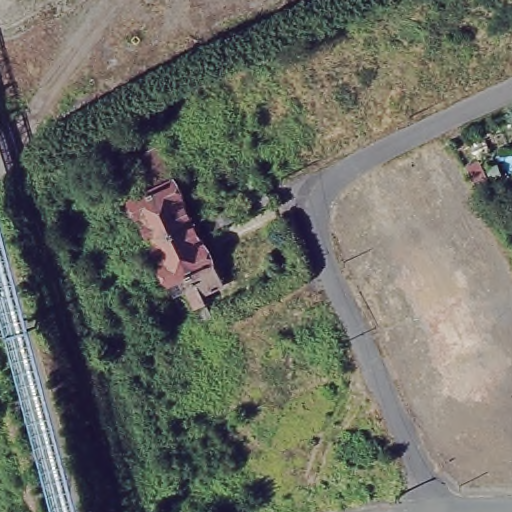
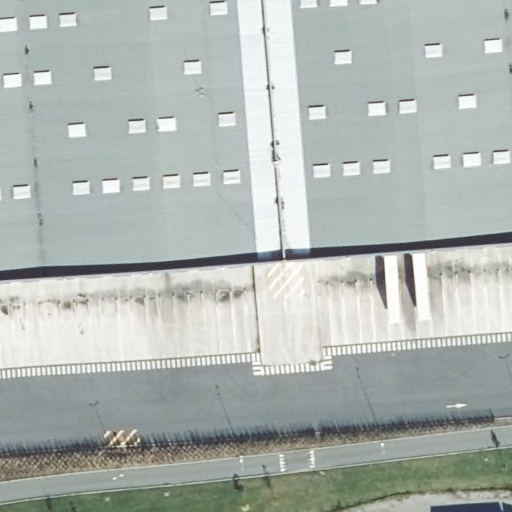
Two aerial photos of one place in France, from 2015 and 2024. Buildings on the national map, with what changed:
new [(512,238),(0,277),(0,0),(512,0),(512,238)]
demolished [(158,144),(173,176),(182,194),(177,196),(188,219),(170,228),(136,154),(142,152),(158,144)]
demolished [(95,160),(85,165),(80,156),(92,150),(95,160)]
demolished [(170,228),(151,237),(140,214),(136,216),(128,197),(138,192),(132,178),(137,176),(129,157),(136,154),(170,228)]
demolished [(492,194),(480,200),(467,170),(478,164),(492,194)]
demolished [(268,206),(245,217),(240,205),(262,194),(268,206)]
demolished [(235,223),(210,234),(203,218),(227,206),(235,223)]
demolished [(188,219),(199,241),(202,239),(223,284),(201,294),(170,229),(170,228),(188,219)]
demolished [(173,294),(157,260),(160,259),(151,237),(170,228),(170,229),(201,294),(211,315),(200,320),(195,310),(183,315),(173,294)]
demolished [(413,314),(410,315),(401,296),(395,282),(407,276),(410,275),(402,257),(408,254),(415,251),(422,269),(440,261),(447,275),(455,293),(450,296),(462,321),(443,329),(425,338),(413,314)]
demolished [(512,318),(482,331),(476,314),(507,300),(512,310),(512,318)]
demolished [(472,342),(477,340),(495,379),(472,389),(443,329),(462,321),(472,342)]
demolished [(443,329),(472,389),(449,399),(431,361),(435,359),(425,338),(443,329)]

